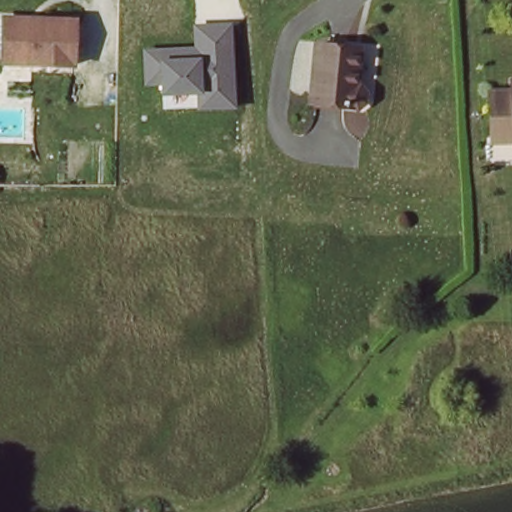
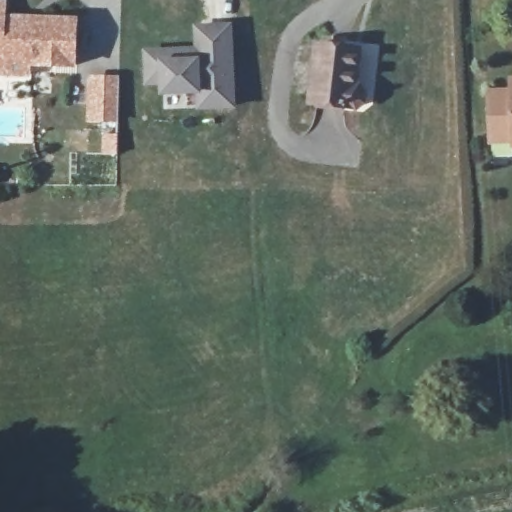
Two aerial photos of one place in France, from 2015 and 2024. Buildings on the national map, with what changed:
new [(5,18),(0,18),(0,0),(5,0),(5,18)]
unchanged [(0,57),(0,19),(71,20),(70,66),(27,65),(0,65),(0,57)]
unchanged [(205,107),(204,91),(168,93),(167,82),(152,82),(151,51),(202,49),(202,27),(209,26),(235,25),(237,90),(238,106),(205,107)]
unchanged [(362,82),(365,85),(367,88),(367,92),(367,96),(365,100),(361,103),(357,104),(355,104),(310,100),(310,94),(318,41),(361,47),(357,82),(362,82)]
new [(118,75),(118,123),(87,122),(89,75),(118,75)]
unchanged [(490,136),(489,98),(510,97),(510,86),(512,86),(512,146),(490,146),(490,136)]

